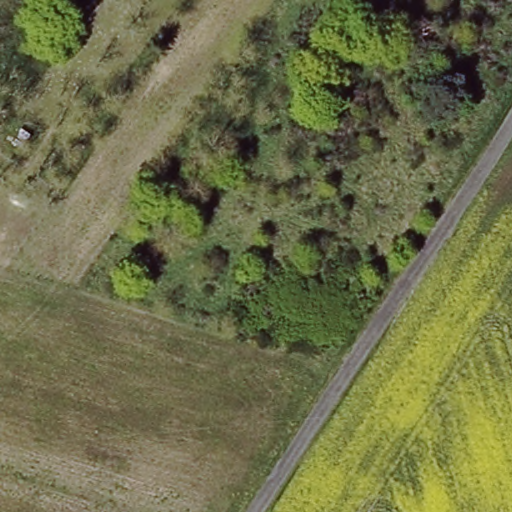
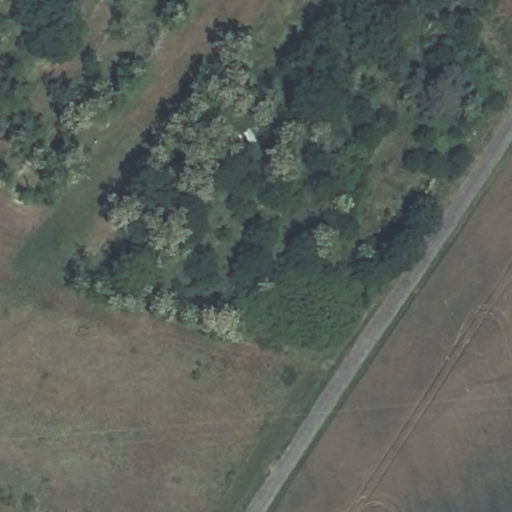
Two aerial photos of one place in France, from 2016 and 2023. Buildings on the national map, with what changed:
[]

